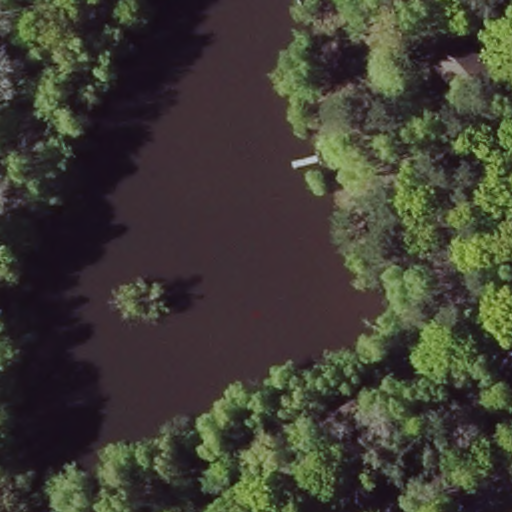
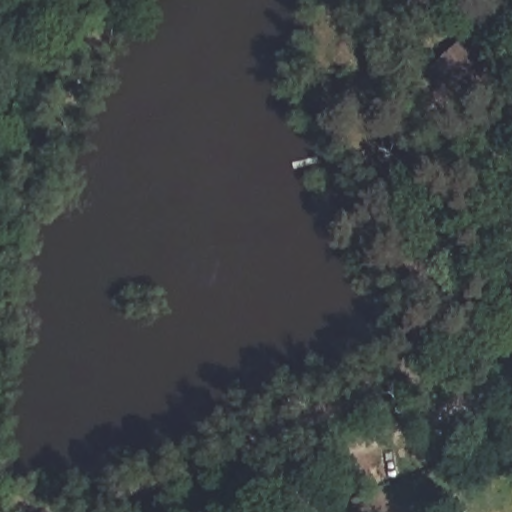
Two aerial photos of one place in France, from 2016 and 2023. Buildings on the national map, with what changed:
unchanged [(431,67),(460,35),(477,56),(491,45),(505,61),(461,103),(431,67)]
unchanged [(455,492),(466,512),(418,512),(455,492)]

